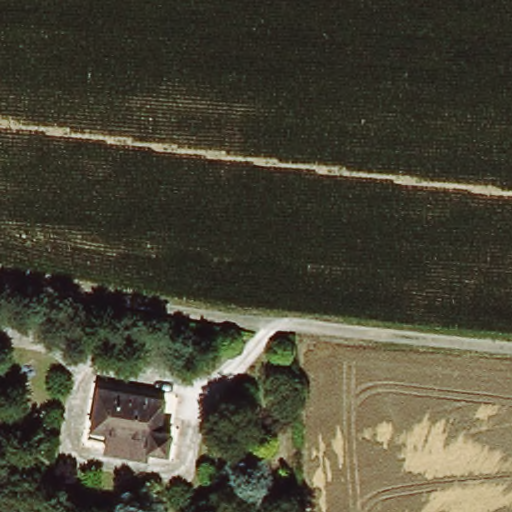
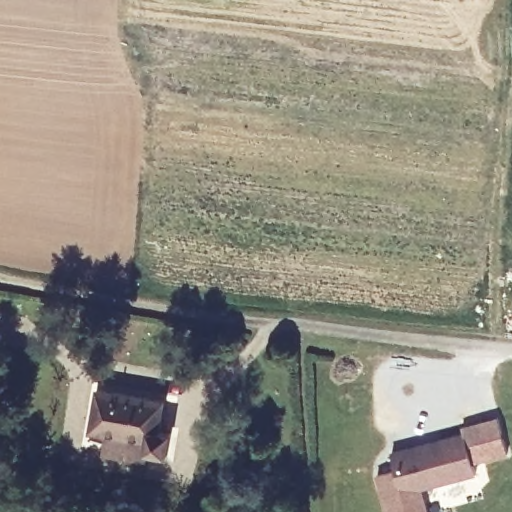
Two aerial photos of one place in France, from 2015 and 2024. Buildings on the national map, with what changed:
unchanged [(152,441),(150,455),(108,450),(110,436),(87,433),(92,392),(157,400),(154,419),(171,421),(168,443),(152,441)]
new [(397,468),(393,451),(465,432),(463,425),(499,416),(509,452),(474,461),(478,472),(423,487),(430,512),(388,512),(379,473),(397,468)]

